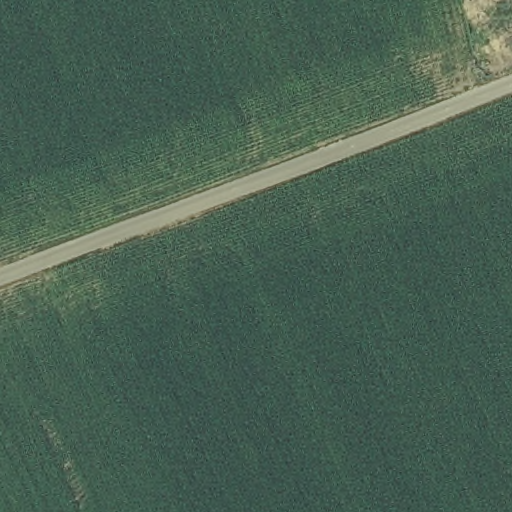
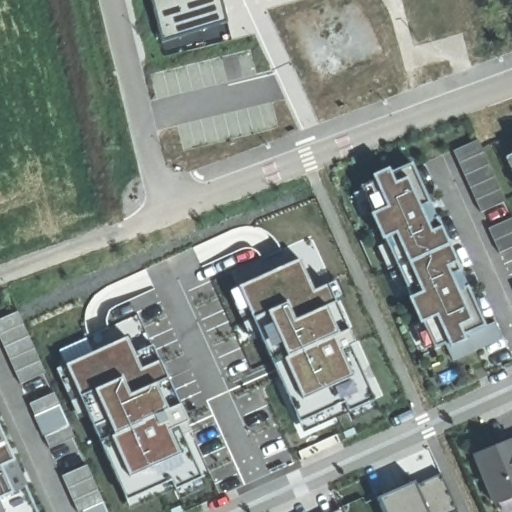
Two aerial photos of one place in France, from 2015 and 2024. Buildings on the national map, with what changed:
new [(226,24),(162,44),(150,0),(222,0),(226,24)]
new [(478,140),(505,201),(480,212),(452,150),(478,140)]
new [(464,333),(467,341),(449,348),(445,342),(435,347),(425,321),(418,324),(406,298),(415,295),(390,237),(381,240),(370,213),(375,211),(361,185),(374,180),(372,175),(387,168),(412,158),(492,327),(477,334),(476,331),(464,333)]
new [(487,227),(512,219),(512,248),(498,252),(487,227)]
new [(303,261),(368,399),(307,431),(243,288),(303,261)]
new [(45,372),(20,383),(0,337),(0,319),(17,311),(45,372)]
new [(136,351),(154,342),(190,418),(180,423),(204,475),(178,487),(173,479),(129,498),(67,362),(128,334),(136,351)]
new [(75,436),(50,447),(30,404),(53,393),(75,436)]
new [(36,512),(0,512),(0,431),(36,512)]
new [(471,454),(512,437),(512,498),(494,504),(471,454)]
new [(82,512),(79,512),(63,477),(86,464),(108,512),(85,512),(83,510),(82,512)]
new [(383,512),(376,497),(397,488),(413,481),(415,485),(400,492),(440,474),(457,510),(453,512),(383,512)]

